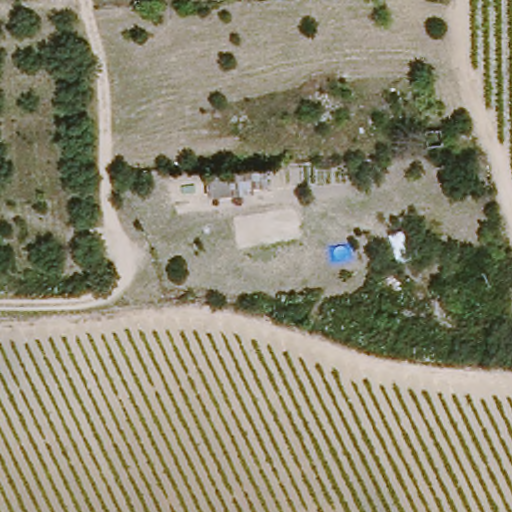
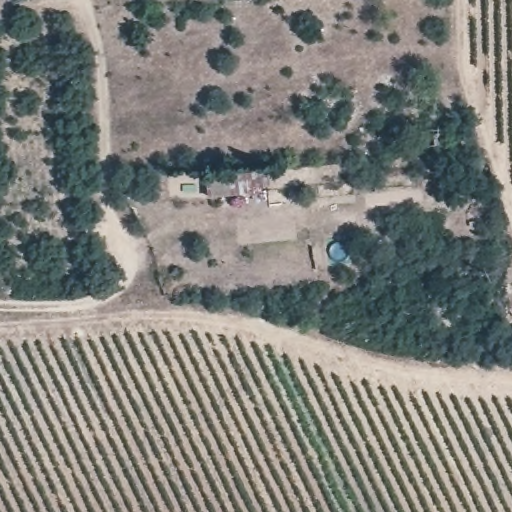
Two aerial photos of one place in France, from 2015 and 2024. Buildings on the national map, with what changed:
unchanged [(446,148),(422,151),(421,132),(444,130),(446,148)]
unchanged [(269,169),(270,191),(258,192),(259,199),(174,206),(170,180),(269,169)]

